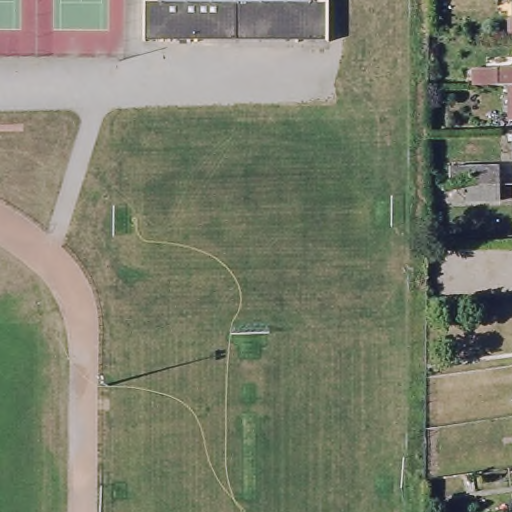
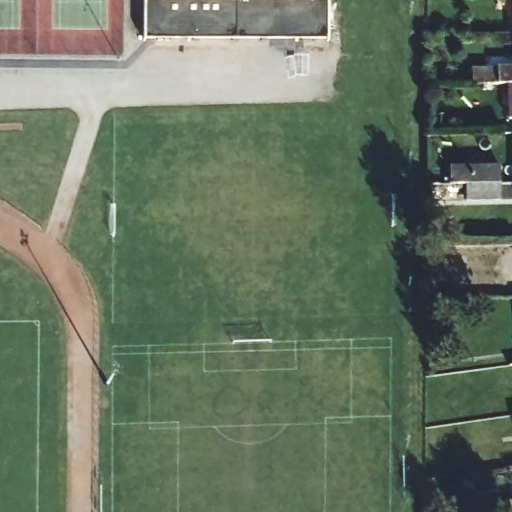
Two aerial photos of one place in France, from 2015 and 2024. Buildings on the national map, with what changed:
unchanged [(145,35),(145,0),(329,0),(329,36),(145,35)]
unchanged [(505,0),(512,0),(512,30),(505,30),(505,0)]
unchanged [(512,62),(512,80),(509,80),(472,79),(472,62),(512,62)]
unchanged [(509,80),(512,80),(512,115),(508,115),(509,80)]
unchanged [(464,199),(464,184),(455,184),(455,168),(499,167),(499,184),(498,199),(464,199)]

